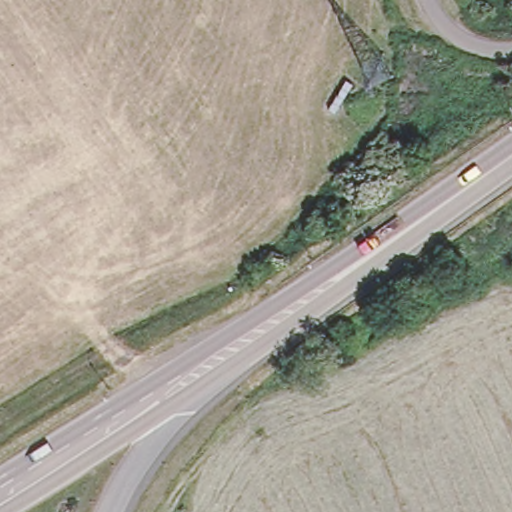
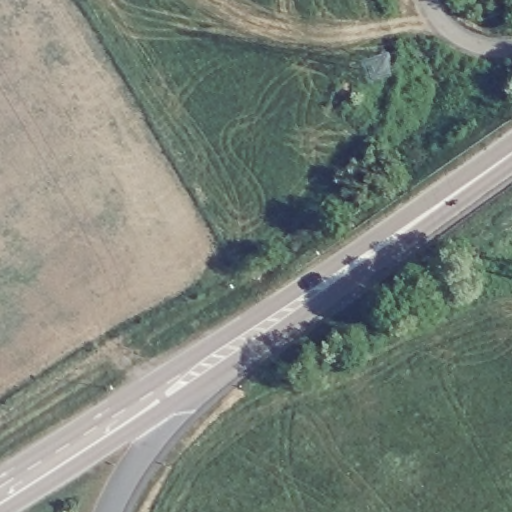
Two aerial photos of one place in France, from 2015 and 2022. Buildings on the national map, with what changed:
[]

